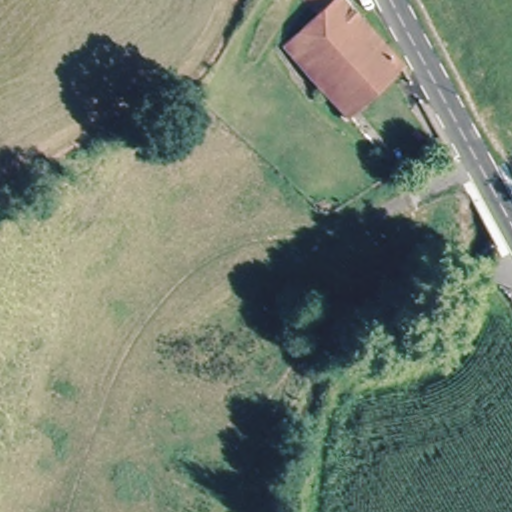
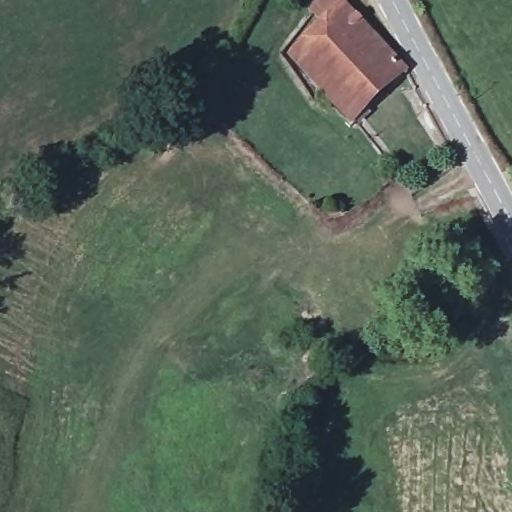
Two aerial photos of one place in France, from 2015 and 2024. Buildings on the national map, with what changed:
unchanged [(408,71),(343,130),(279,65),(328,17),(315,3),(319,0),(346,0),(408,71)]

